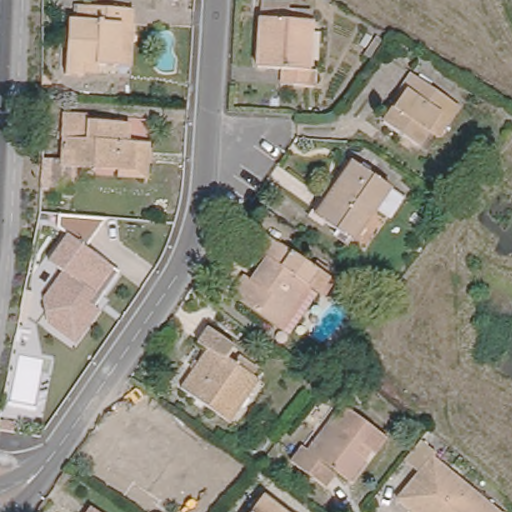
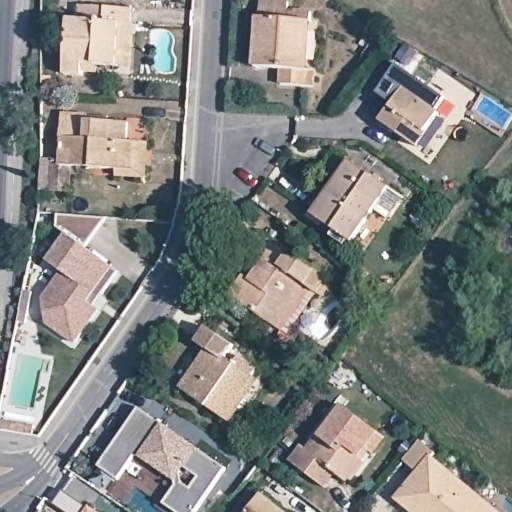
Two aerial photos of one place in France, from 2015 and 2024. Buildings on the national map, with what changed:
unchanged [(114,57),(78,55),(78,67),(60,65),(63,11),(72,11),(72,0),(129,0),(128,15),(125,58),(114,57)]
unchanged [(280,64),(256,62),(260,0),(288,0),(288,6),(301,7),(310,7),(307,65),(306,80),(279,80),(280,64)]
unchanged [(438,132),(427,125),(416,141),(382,118),(393,102),(388,99),(400,81),(408,69),(447,96),(458,104),(438,132)]
unchanged [(117,165),(60,161),(62,133),(63,109),(87,111),(87,117),(129,120),(128,138),(137,139),(148,139),(147,175),(116,174),(117,165)]
unchanged [(338,190),(356,164),(393,190),(355,242),(327,222),(320,216),(338,190)]
unchanged [(45,300),(50,303),(63,283),(60,280),(65,271),(38,251),(56,226),(102,259),(109,264),(85,298),(72,319),(62,332),(37,315),(45,300)]
unchanged [(276,321),(237,294),(230,290),(243,272),(249,277),(265,252),(251,242),(261,228),(289,247),(332,277),(322,292),(310,285),(305,280),(276,321)]
unchanged [(322,292),(293,334),(276,321),(305,280),(310,285),(322,292)]
unchanged [(181,388),(207,349),(198,342),(207,330),(233,347),(226,358),(232,362),(252,377),(258,381),(230,422),(225,418),(181,388)]
unchanged [(285,457),(297,443),(302,447),(335,401),(377,433),(365,448),(363,446),(357,454),(340,476),(330,468),(320,482),(285,457)]
new [(195,512),(178,512),(165,503),(177,487),(176,481),(138,455),(134,456),(118,478),(100,465),(140,408),(226,468),(195,512)]
demolished [(167,456),(157,471),(147,485),(110,459),(117,450),(134,426),(127,421),(135,409),(197,452),(185,469),(183,467),(167,456)]
unchanged [(412,512),(398,500),(420,473),(403,460),(418,440),(437,453),(432,460),(495,512),(412,512)]
unchanged [(285,512),(242,512),(258,492),(285,512)]
unchanged [(106,512),(77,512),(86,498),(106,512)]

